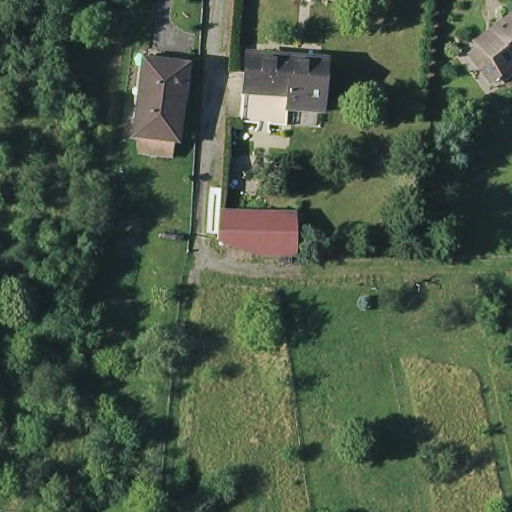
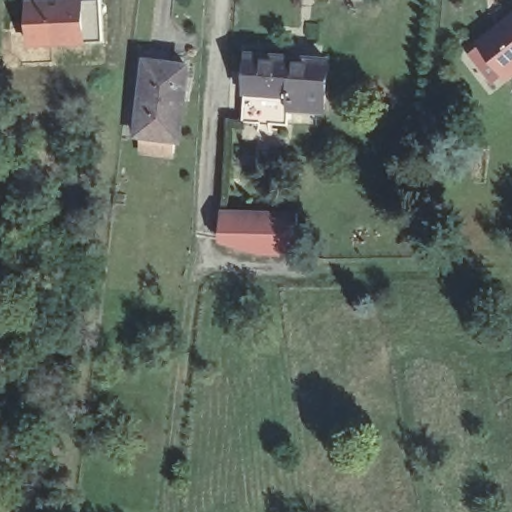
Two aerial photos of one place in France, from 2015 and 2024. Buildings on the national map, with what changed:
new [(103,41),(84,44),(29,46),(24,0),(100,0),(103,41)]
unchanged [(470,50),(480,42),(479,40),(497,25),(499,26),(512,17),(512,68),(504,74),(502,71),(492,80),(470,50)]
unchanged [(284,120),(241,118),(243,87),(286,90),(289,54),(299,55),(300,48),(326,50),(326,56),(324,106),(289,104),(289,120),(284,120)]
unchanged [(286,90),(243,87),(244,51),(289,54),(286,90)]
unchanged [(143,152),(143,136),(136,135),(137,105),(129,105),(133,56),(163,56),(163,65),(182,65),(178,137),(175,137),(174,154),(143,152)]
unchanged [(299,258),(280,258),(262,258),(220,244),(222,216),(283,216),(298,217),(299,258)]

